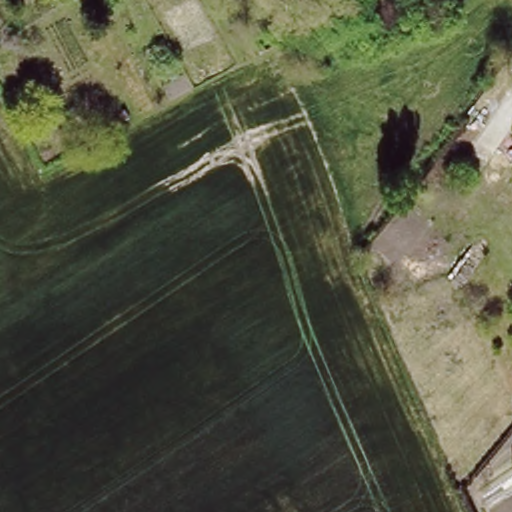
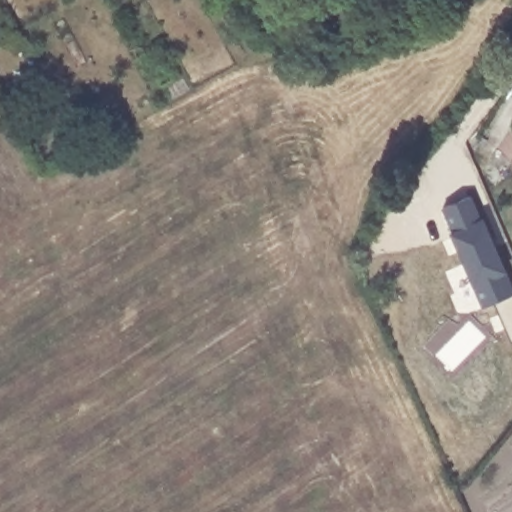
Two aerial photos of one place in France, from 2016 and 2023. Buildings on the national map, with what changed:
new [(483,308),(450,232),(452,231),(442,208),(472,195),(482,218),(484,218),(512,286),(512,343),(495,303),(483,308)]

